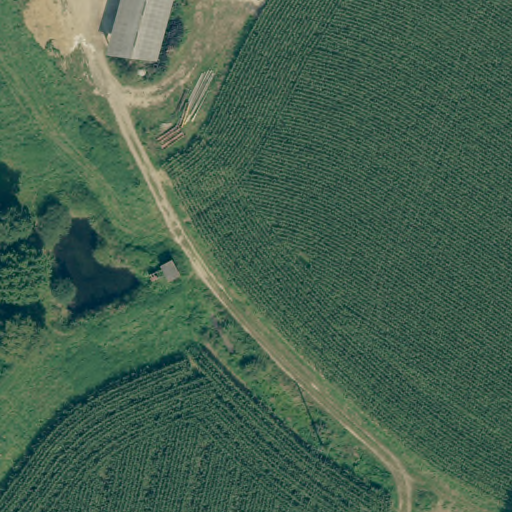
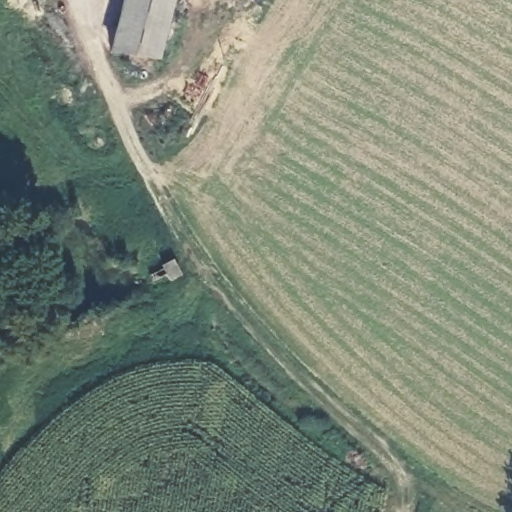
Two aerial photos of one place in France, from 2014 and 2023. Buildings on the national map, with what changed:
unchanged [(122,0),(173,0),(158,62),(108,56),(122,0)]

